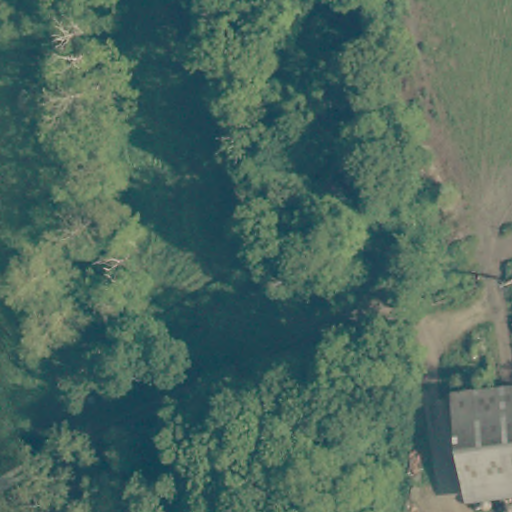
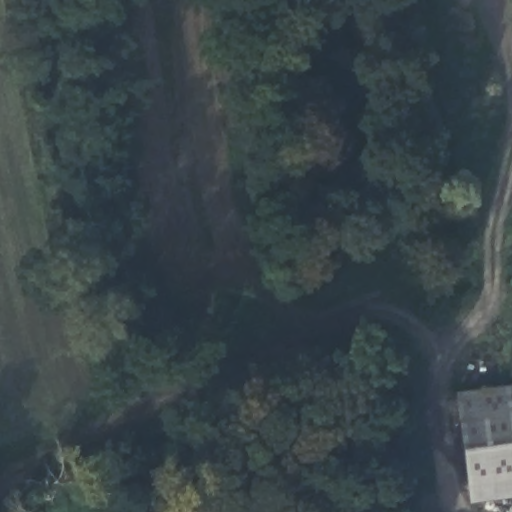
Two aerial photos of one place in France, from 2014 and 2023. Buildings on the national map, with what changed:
unchanged [(466,497),(455,394),(512,388),(512,492),(466,497)]

